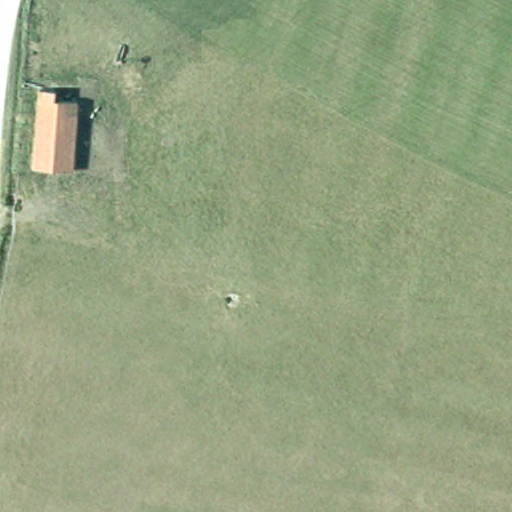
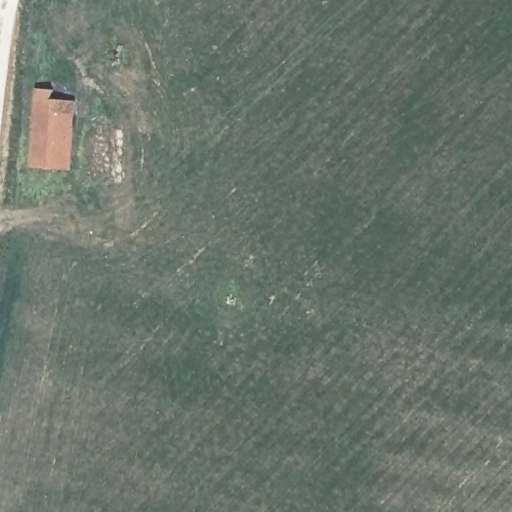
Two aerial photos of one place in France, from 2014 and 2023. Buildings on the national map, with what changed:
unchanged [(32,168),(38,90),(54,90),(53,99),(75,100),(70,171),(32,168)]

